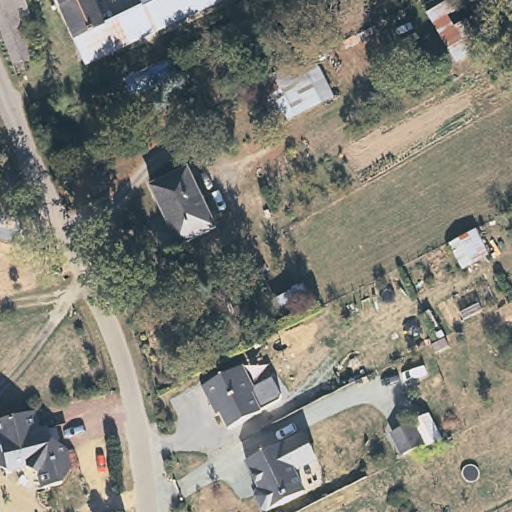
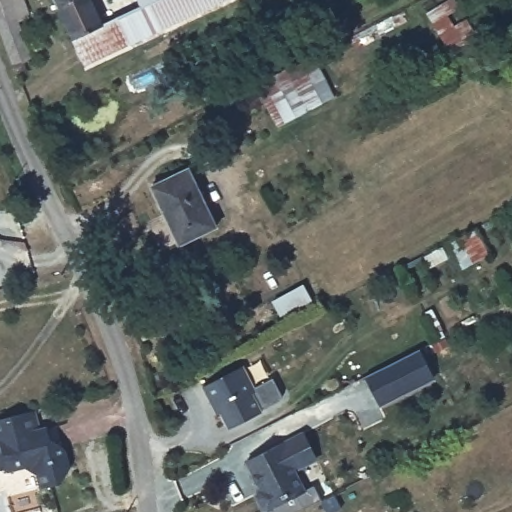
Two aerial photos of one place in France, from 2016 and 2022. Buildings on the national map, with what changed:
unchanged [(4,0),(0,2),(0,0),(4,0)]
unchanged [(16,0),(35,55),(37,58),(29,60),(33,71),(20,75),(0,21),(0,2),(4,0),(16,0)]
unchanged [(116,49),(86,64),(54,0),(94,0),(104,22),(116,49)]
unchanged [(152,0),(222,0),(146,35),(116,49),(104,22),(129,10),(141,5),(152,0)]
unchanged [(462,18),(469,30),(471,29),(481,44),(455,61),(425,12),(445,0),(455,0),(458,5),(447,13),(454,23),(462,18)]
unchanged [(318,70),(305,77),(318,102),(293,115),(276,125),(256,85),(311,57),(318,70)]
unchanged [(190,163),(217,228),(179,245),(151,178),(190,163)]
new [(419,348),(434,378),(379,407),(364,376),(419,348)]
unchanged [(243,365),(256,390),(252,392),(262,410),(229,428),(214,400),(211,401),(203,386),(243,365)]
unchanged [(11,475),(0,468),(0,422),(31,414),(35,436),(44,435),(45,443),(59,453),(67,484),(60,495),(46,497),(44,487),(39,483),(22,472),(11,475)]
unchanged [(285,445),(295,465),(294,474),(305,495),(272,512),(264,512),(257,500),(259,495),(262,493),(247,465),(285,445)]

